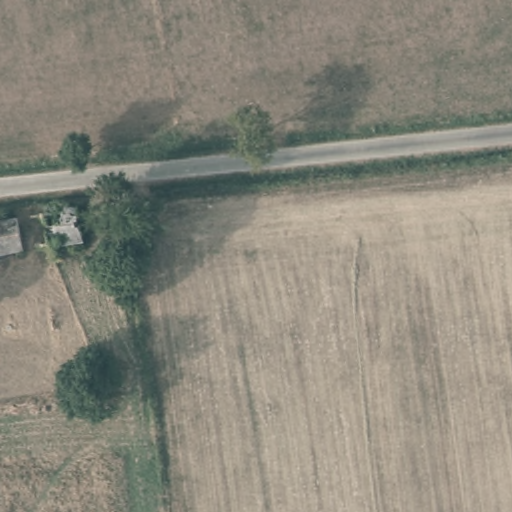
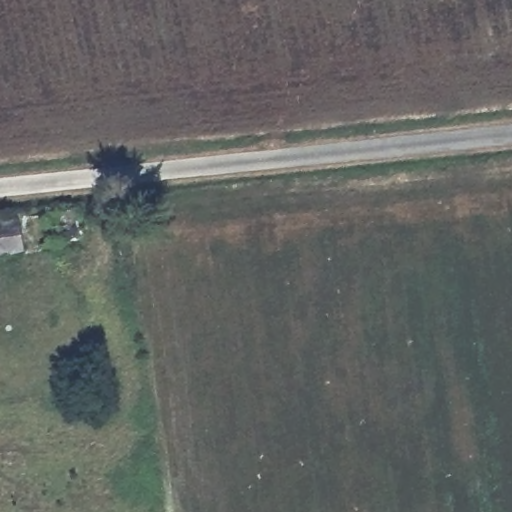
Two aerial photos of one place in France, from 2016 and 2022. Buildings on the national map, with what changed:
unchanged [(80,207),(85,237),(55,242),(52,243),(46,212),(80,207)]
unchanged [(0,252),(0,219),(19,217),(22,244),(22,248),(0,252)]

